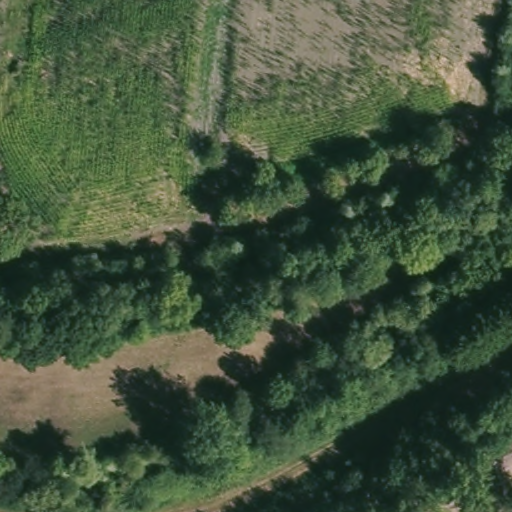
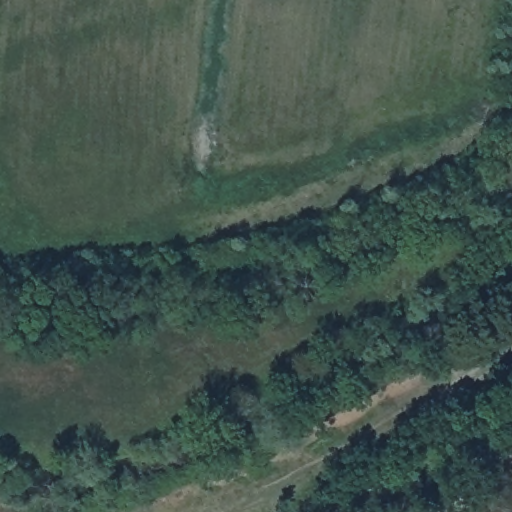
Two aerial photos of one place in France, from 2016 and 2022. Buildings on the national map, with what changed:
unchanged [(512,427),(512,457),(501,433),(512,427)]

